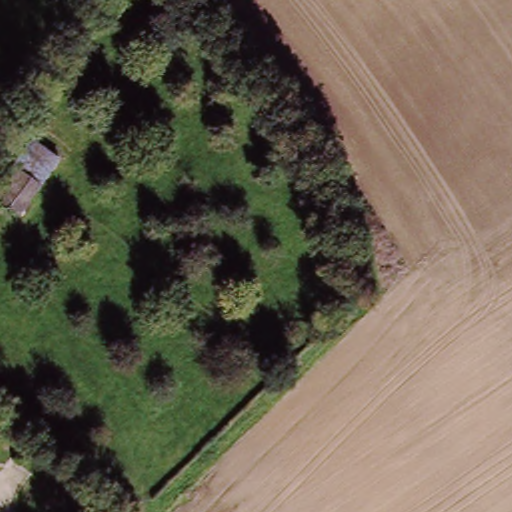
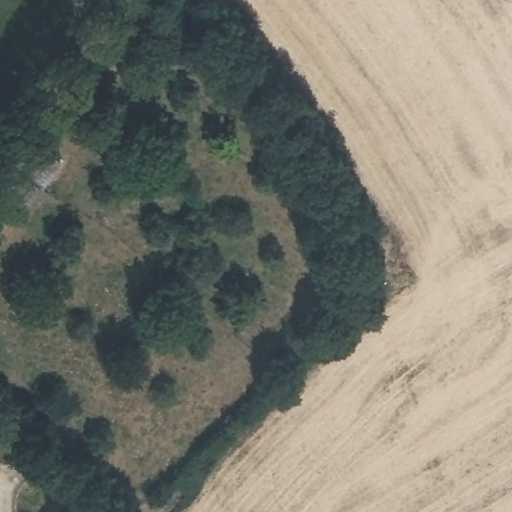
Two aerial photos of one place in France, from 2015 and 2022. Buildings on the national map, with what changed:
unchanged [(55,163),(15,218),(0,208),(0,182),(28,144),(55,163)]

